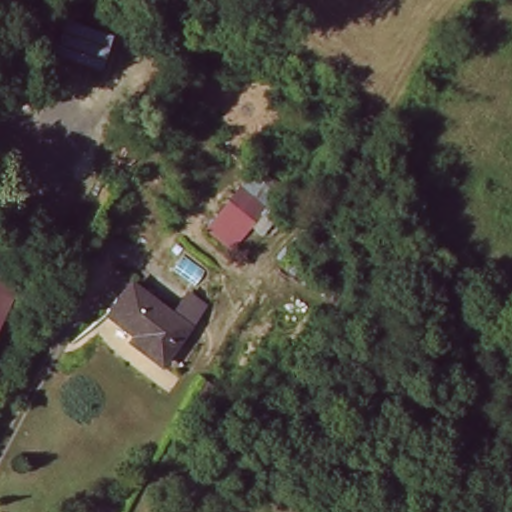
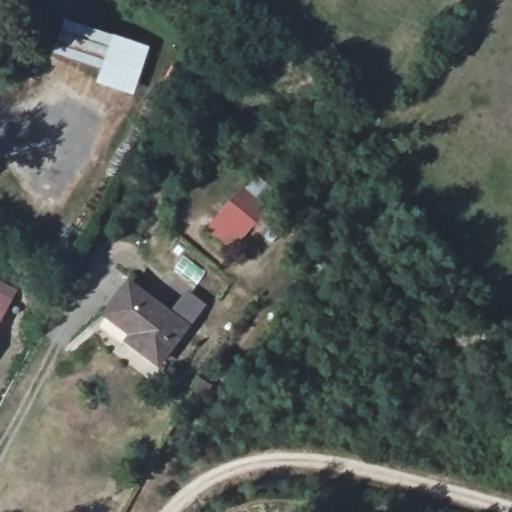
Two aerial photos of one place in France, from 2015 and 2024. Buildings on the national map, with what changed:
unchanged [(112,36),(103,71),(55,54),(66,19),(112,36)]
new [(103,71),(112,36),(150,46),(136,96),(95,83),(99,69),(103,71)]
unchanged [(295,215),(272,242),(253,227),(249,232),(235,250),(208,230),(254,178),(295,215)]
unchanged [(183,328),(154,368),(122,343),(130,332),(105,312),(127,282),(183,328)]
unchanged [(0,324),(0,283),(15,290),(0,324)]

